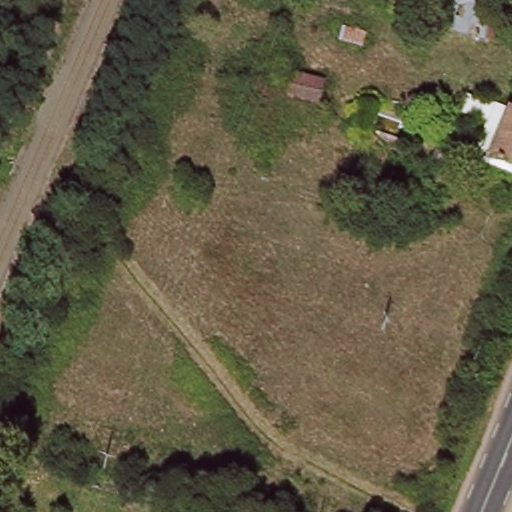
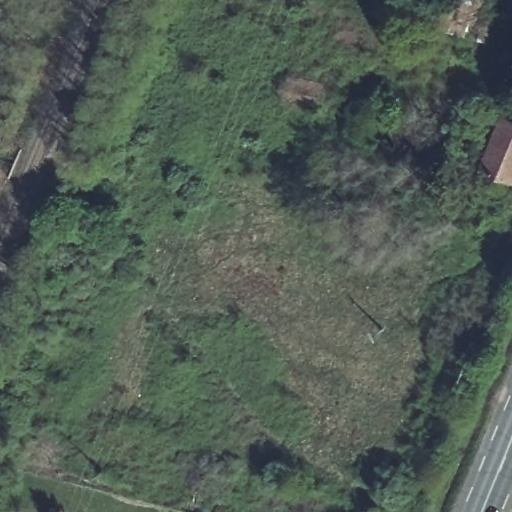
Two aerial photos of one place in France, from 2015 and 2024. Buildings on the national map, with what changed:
unchanged [(475,161),(489,125),(479,121),(463,115),(471,97),(486,105),(512,116),(512,176),(475,161)]

